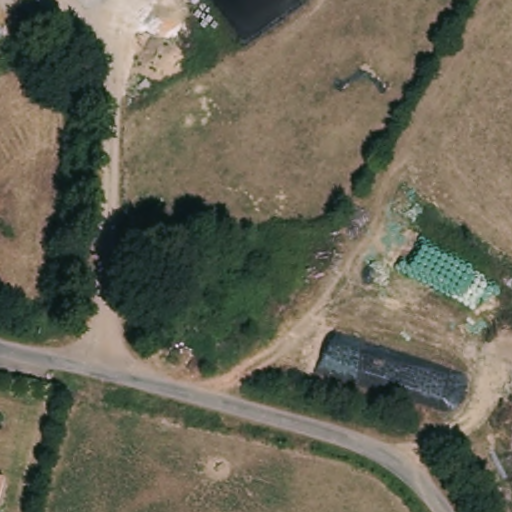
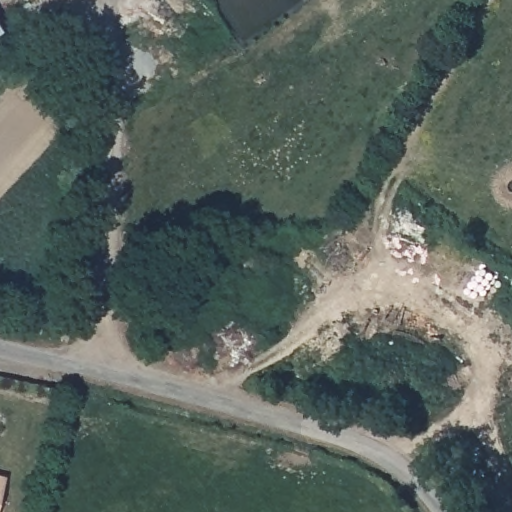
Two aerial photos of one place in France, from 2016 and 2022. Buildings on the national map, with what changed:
unchanged [(7,487),(1,512),(0,512),(0,485),(7,487)]

